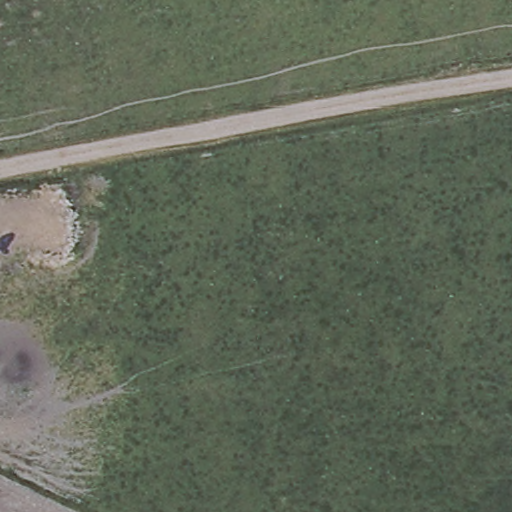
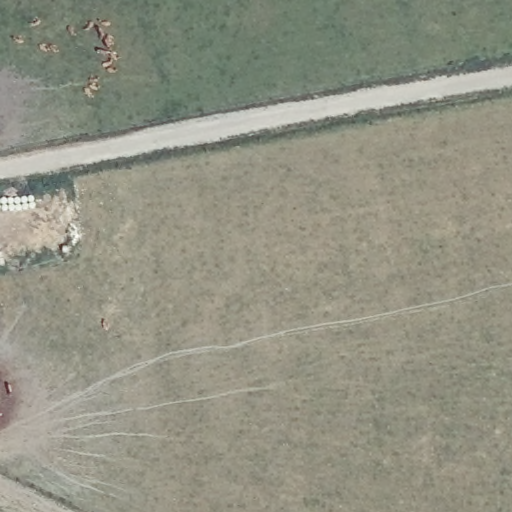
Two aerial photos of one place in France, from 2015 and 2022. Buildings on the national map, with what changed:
[]

